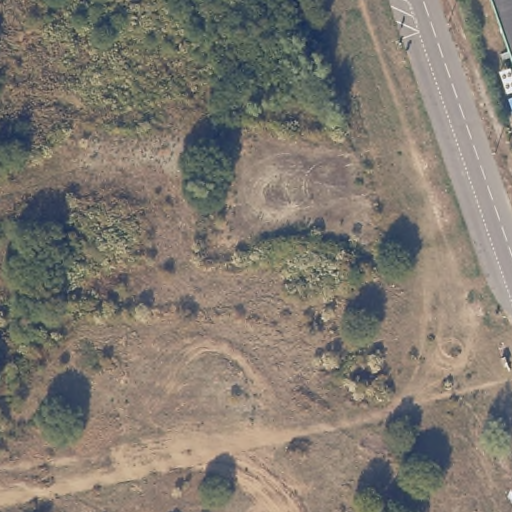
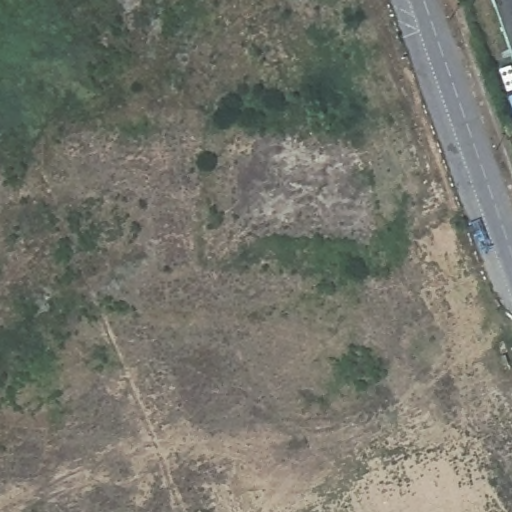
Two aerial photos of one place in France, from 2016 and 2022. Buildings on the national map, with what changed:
unchanged [(502,6),(498,8),(495,0),(512,0),(512,33),(502,6)]

